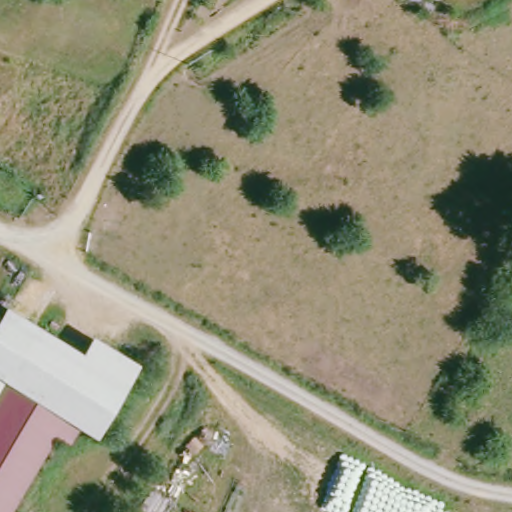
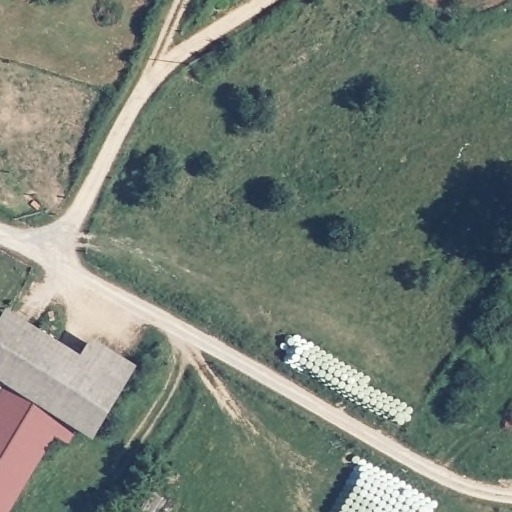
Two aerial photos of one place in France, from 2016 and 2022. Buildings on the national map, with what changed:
unchanged [(43,324),(9,383),(0,400),(0,321),(8,306),(43,324)]
unchanged [(9,383),(43,324),(129,373),(95,432),(65,414),(9,383)]
unchanged [(0,400),(9,383),(65,414),(11,512),(0,512),(0,400)]

